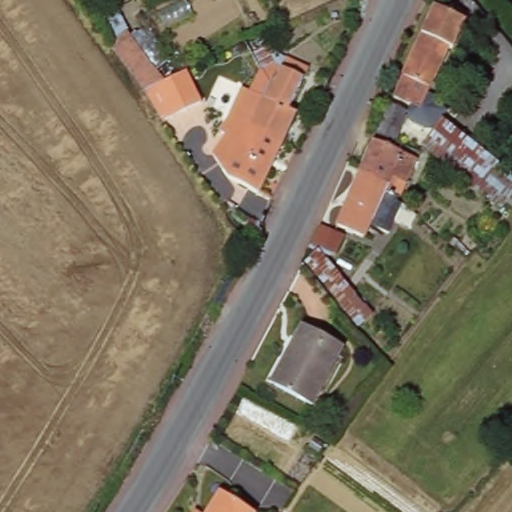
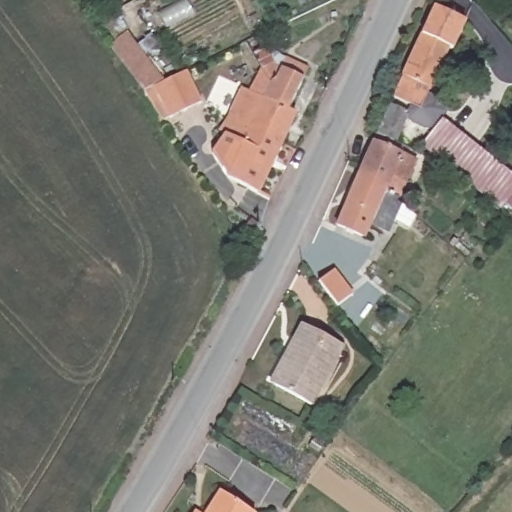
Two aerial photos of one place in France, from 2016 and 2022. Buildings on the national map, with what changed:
unchanged [(433,10),(462,20),(460,25),(426,110),(400,99),(433,10)]
unchanged [(126,30),(168,80),(159,85),(149,90),(112,40),(126,30)]
unchanged [(251,126),(264,98),(268,89),(260,70),(279,66),(283,59),(305,67),(287,107),(294,110),(284,137),(251,126)]
unchanged [(159,85),(168,80),(187,72),(201,104),(166,119),(149,90),(159,85)]
unchanged [(237,123),(230,121),(242,91),(264,98),(251,126),(284,137),(263,192),(233,182),(220,164),(237,123)]
unchanged [(388,106),(412,116),(406,129),(399,126),(393,143),(375,136),(388,106)]
unchanged [(438,121),(511,184),(494,206),(419,149),(438,121)]
unchanged [(376,142),(416,163),(403,195),(374,184),(377,174),(365,169),(376,142)]
unchanged [(401,227),(380,218),(375,230),(346,220),(365,169),(377,174),(374,184),(403,195),(400,201),(410,210),(401,227)]
unchanged [(314,225),(334,235),(325,260),(344,282),(359,274),(375,298),(361,307),(370,321),(357,331),(307,266),(321,255),(306,249),(314,225)]
unchanged [(302,330),(339,352),(309,405),(270,382),(302,330)]
unchanged [(250,512),(206,512),(218,492),(250,512)]

